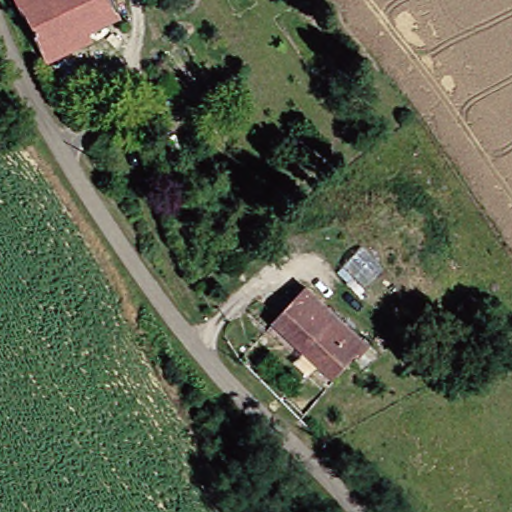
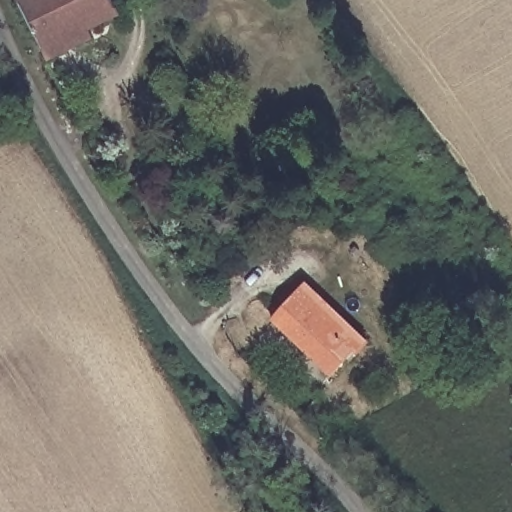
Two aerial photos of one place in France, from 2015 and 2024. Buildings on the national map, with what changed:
unchanged [(112,14),(38,51),(12,0),(105,0),(112,14)]
unchanged [(291,285),(352,342),(341,353),(337,350),(314,374),(257,320),(291,285)]

